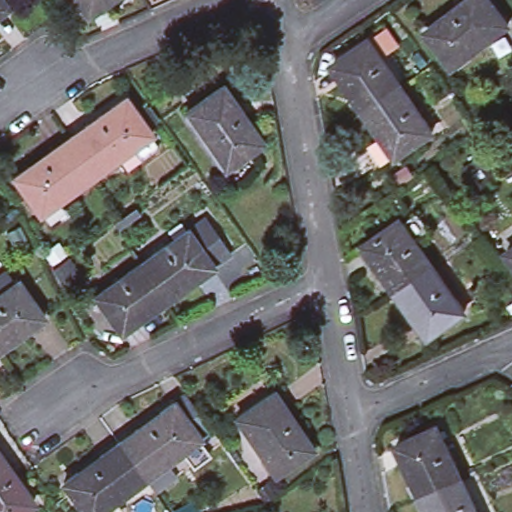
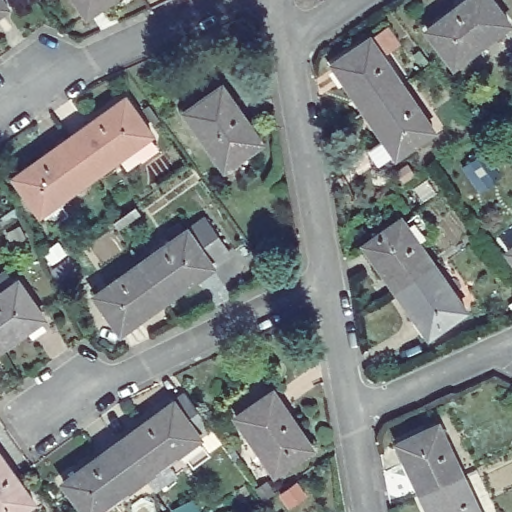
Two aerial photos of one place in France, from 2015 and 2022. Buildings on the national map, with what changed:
unchanged [(109,0),(84,18),(72,0),(109,0)]
unchanged [(488,0),(506,25),(450,66),(425,32),(467,0),(488,0)]
unchanged [(4,11),(0,14),(0,5),(4,11)]
unchanged [(325,69),(360,41),(393,88),(357,114),(325,69)]
unchanged [(176,109),(213,84),(253,140),(216,165),(176,109)]
unchanged [(357,114),(393,88),(425,133),(389,159),(357,114)]
unchanged [(116,100),(142,138),(87,177),(60,140),(116,100)]
unchanged [(5,179),(60,140),(87,177),(31,217),(5,179)]
unchanged [(357,249),(394,222),(425,268),(389,294),(357,249)]
unchanged [(173,236),(190,224),(217,261),(200,274),(154,306),(127,268),(173,236)]
unchanged [(512,247),(512,263),(505,253),(512,247)]
unchanged [(81,300),(127,268),(154,306),(108,339),(81,300)]
unchanged [(389,294),(425,268),(457,314),(420,340),(389,294)]
unchanged [(3,275),(12,288),(15,285),(40,322),(0,350),(0,277),(3,275)]
unchanged [(233,416),(270,389),(310,447),(271,473),(233,416)]
unchanged [(178,398),(205,434),(191,444),(137,482),(111,446),(165,408),(178,398)]
unchanged [(395,442),(435,424),(459,474),(418,494),(395,442)]
unchanged [(55,486),(111,446),(137,482),(95,512),(74,512),(55,486)]
unchanged [(36,506),(28,512),(0,512),(0,457),(36,506)]
unchanged [(477,512),(427,512),(418,494),(459,474),(477,512)]

